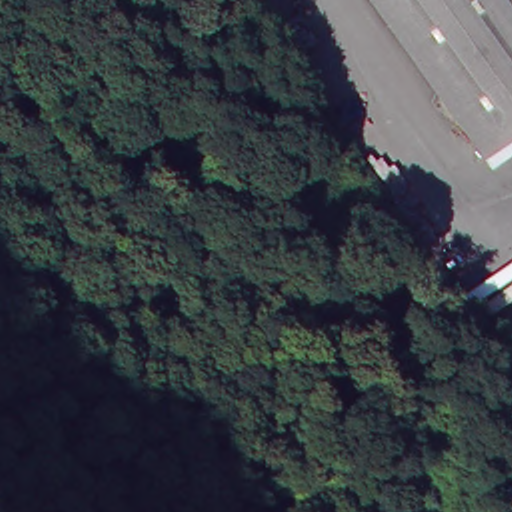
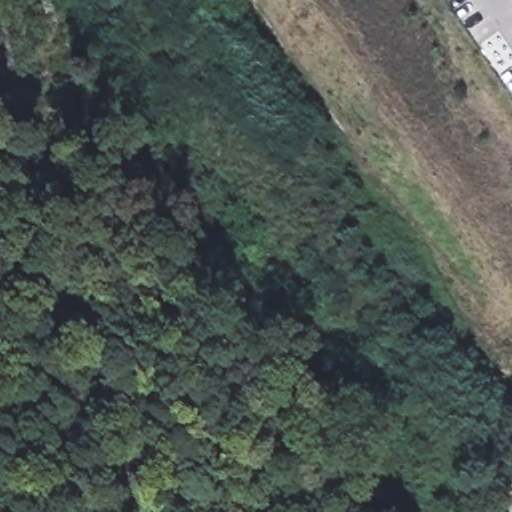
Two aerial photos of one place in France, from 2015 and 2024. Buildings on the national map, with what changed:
demolished [(482,145),(379,0),(512,0),(512,124),(482,145)]
unchanged [(503,489),(512,483),(512,510),(503,489)]

